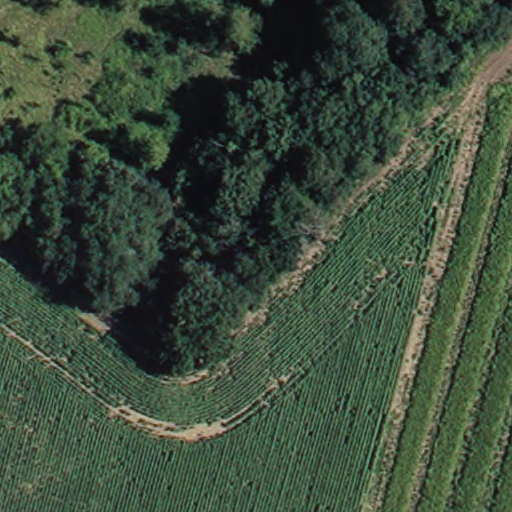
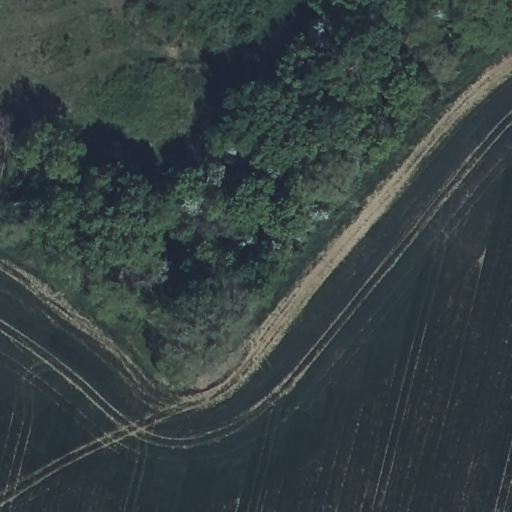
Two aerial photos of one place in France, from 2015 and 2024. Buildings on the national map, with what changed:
[]

